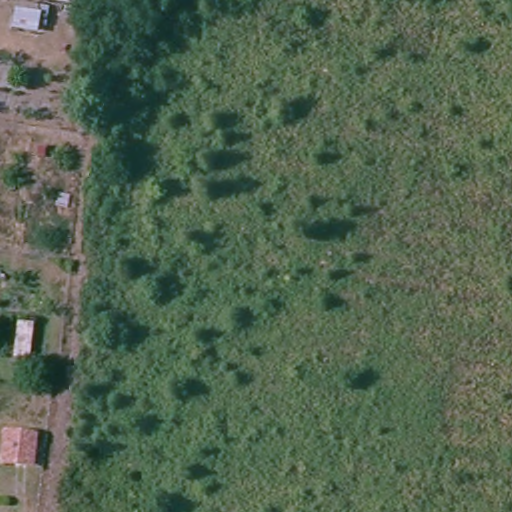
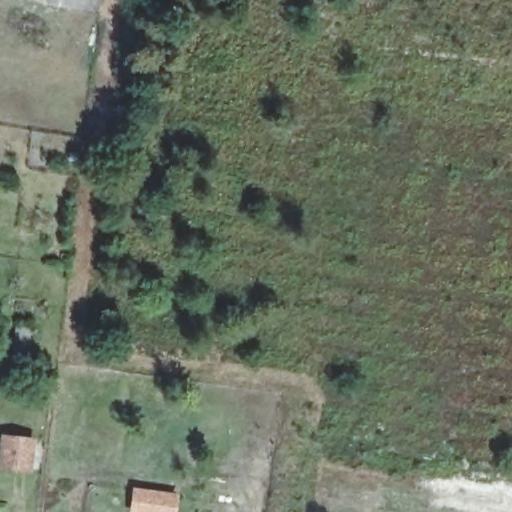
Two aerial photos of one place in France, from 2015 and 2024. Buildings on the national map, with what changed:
new [(48,6),(48,0),(73,0),(71,10),(48,6)]
unchanged [(73,0),(98,0),(96,14),(71,10),(73,0)]
unchanged [(24,447),(36,448),(34,472),(6,468),(9,438),(24,441),(24,447)]
new [(133,487),(179,494),(177,512),(129,512),(133,487)]

